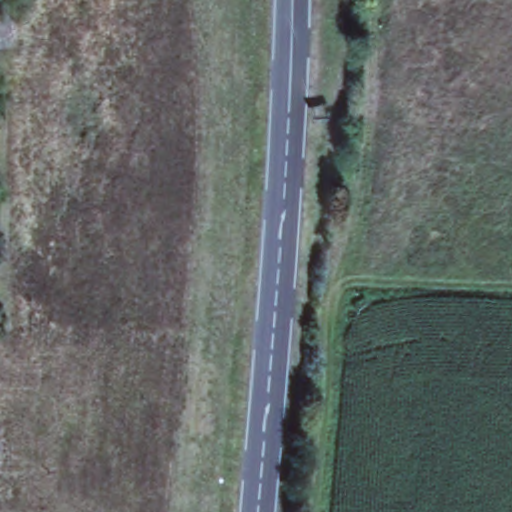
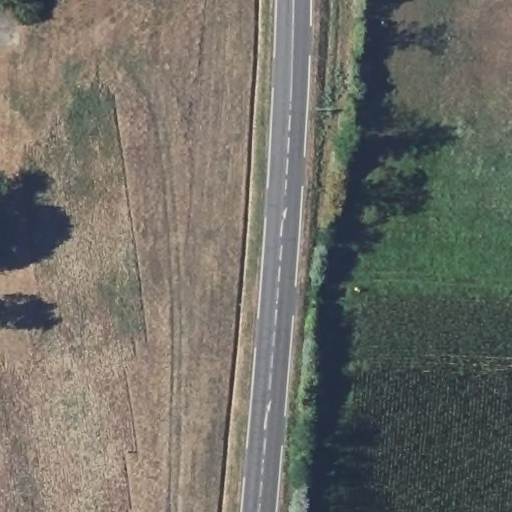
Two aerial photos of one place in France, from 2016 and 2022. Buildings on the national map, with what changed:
[]

